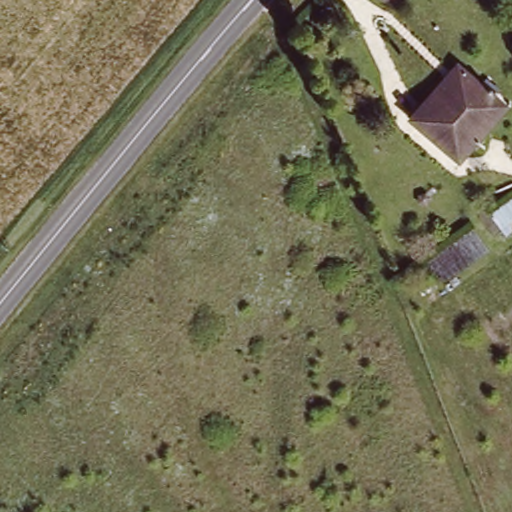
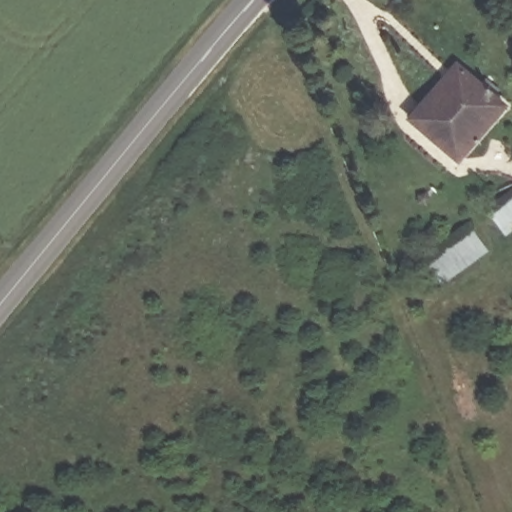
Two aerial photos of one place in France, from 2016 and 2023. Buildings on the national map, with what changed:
unchanged [(502,103),(458,157),(411,120),(456,62),(502,103)]
unchanged [(488,216),(512,199),(512,231),(503,237),(488,216)]

